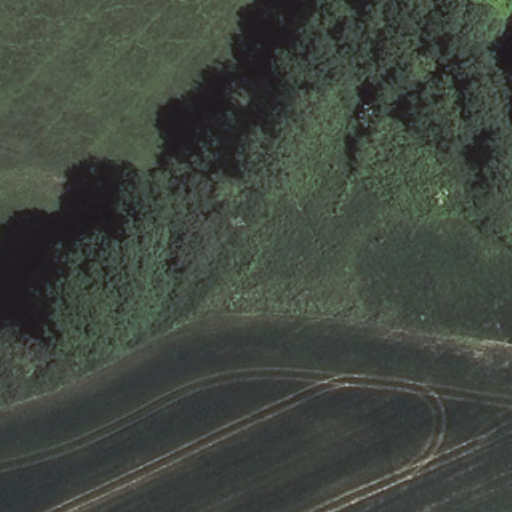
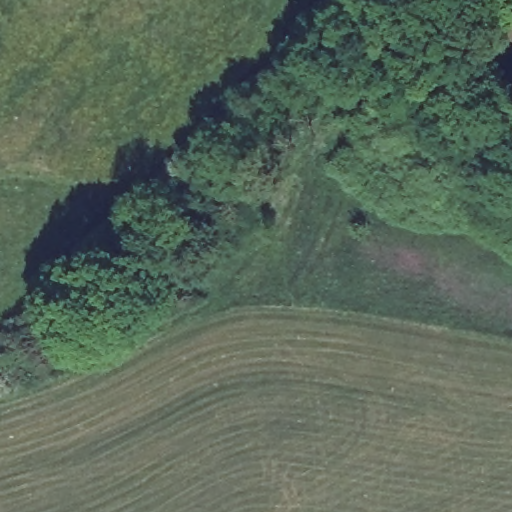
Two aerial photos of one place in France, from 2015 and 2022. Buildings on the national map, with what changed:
unchanged [(510,18),(512,15),(512,33),(505,28),(510,18)]

